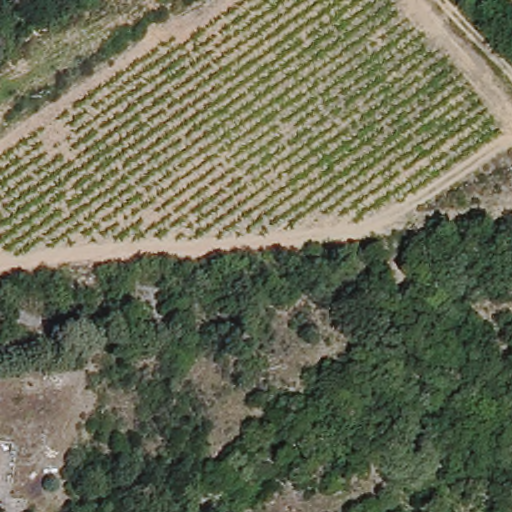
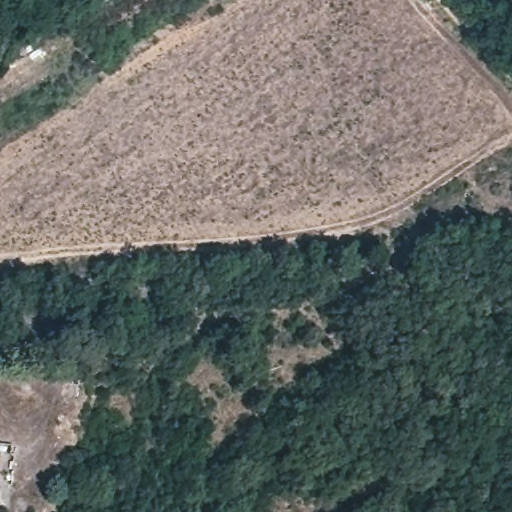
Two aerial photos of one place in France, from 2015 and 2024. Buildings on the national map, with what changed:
unchanged [(2,449),(1,484),(0,484),(0,449),(2,449)]

